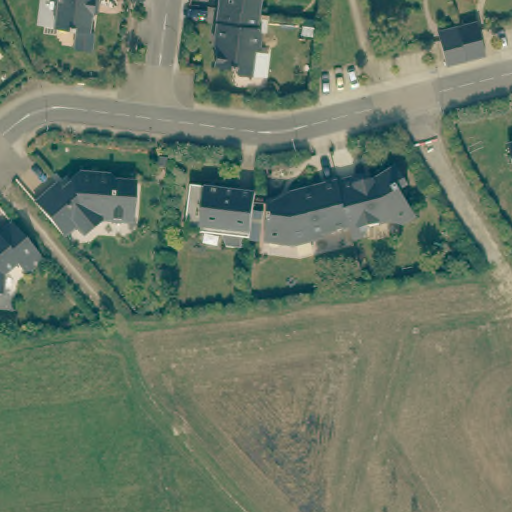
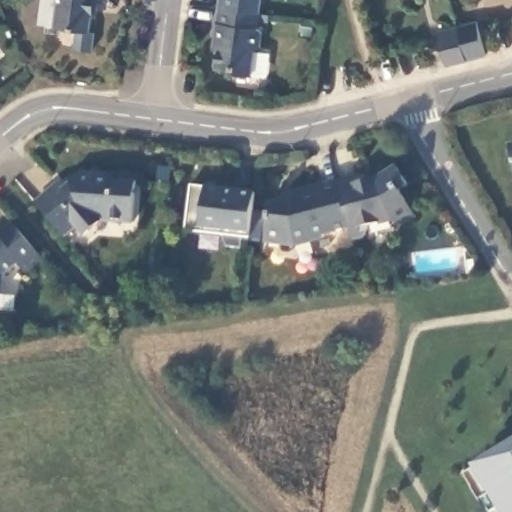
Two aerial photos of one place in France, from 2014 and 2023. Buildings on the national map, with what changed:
unchanged [(98,4),(93,3),(89,32),(54,28),(59,0),(99,0),(98,4)]
unchanged [(215,0),(257,0),(255,13),(214,8),(215,0)]
unchanged [(255,13),(254,28),(258,32),(255,49),(250,52),(247,77),(234,75),(229,69),(211,67),(216,26),(212,25),(214,8),(255,13)]
unchanged [(315,34),(303,32),(304,19),(317,20),(315,34)]
unchanged [(477,22),(480,32),(485,52),(486,56),(467,61),(447,66),(441,41),(439,32),(458,27),(477,22)]
unchanged [(504,145),(512,142),(512,182),(504,145)]
unchanged [(349,229),(344,206),(338,182),(363,175),(366,186),(373,184),(373,180),(397,166),(408,185),(400,191),(414,216),(399,226),(393,223),(391,221),(369,227),(369,229),(365,236),(352,239),(349,229)]
unchanged [(53,184),(58,190),(66,183),(65,180),(74,172),(107,176),(110,180),(131,182),(129,224),(95,221),(79,235),(71,227),(59,237),(29,204),(53,184)]
unchanged [(238,232),(237,244),(221,242),(214,223),(207,222),(195,229),(180,226),(185,181),(201,182),(210,179),(214,189),(219,189),(219,185),(250,187),(244,234),(238,232)]
unchanged [(344,206),(349,229),(310,237),(310,242),(295,245),(264,242),(269,209),(282,205),(280,199),(290,197),(289,193),(338,182),(344,206)]
unchanged [(12,254),(0,264),(0,218),(6,212),(39,251),(22,266),(12,254)]
new [(485,512),(462,475),(474,467),(512,443),(512,512),(485,512)]

